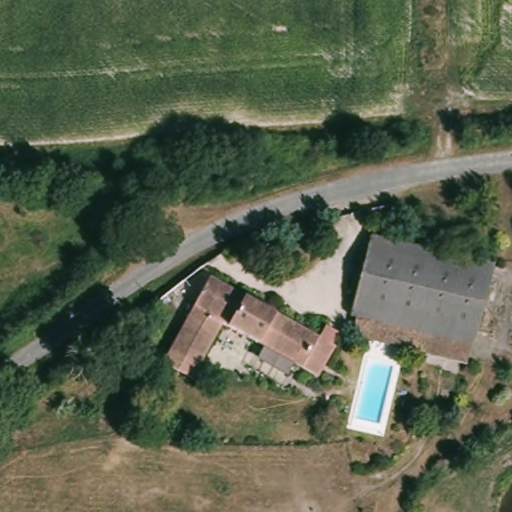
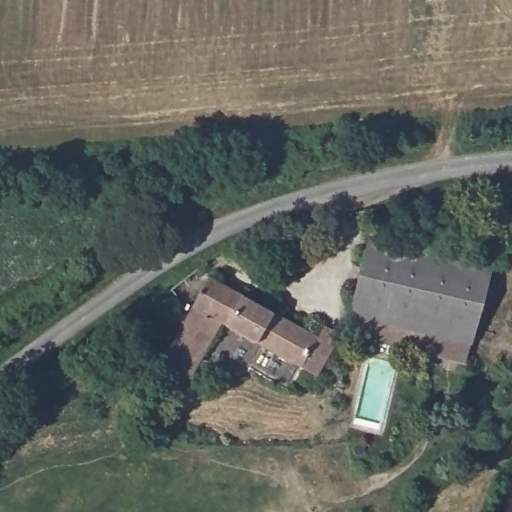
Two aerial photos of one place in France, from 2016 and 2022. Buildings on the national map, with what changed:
unchanged [(345,316),(365,237),(491,266),(469,347),(402,330),(399,343),(380,338),(342,329),(345,316)]
unchanged [(334,350),(316,381),(207,318),(184,356),(195,364),(190,375),(163,362),(210,280),(334,350)]

